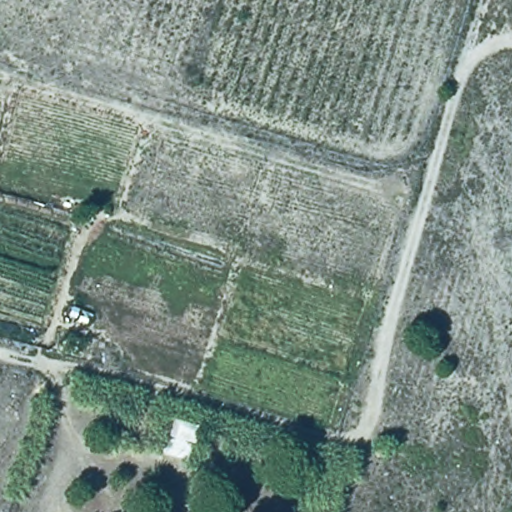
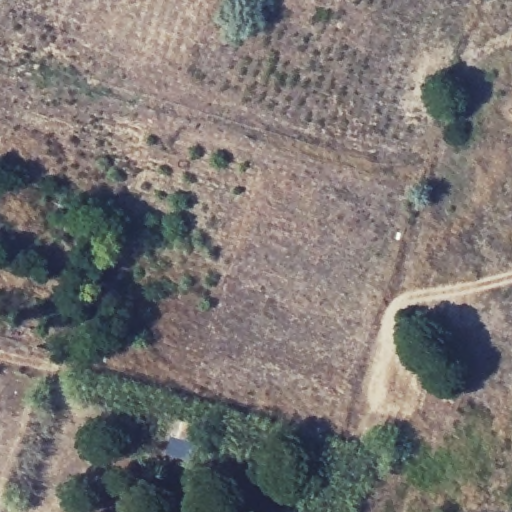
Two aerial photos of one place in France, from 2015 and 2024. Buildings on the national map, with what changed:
unchanged [(202,423),(193,448),(176,443),(178,433),(170,431),(174,416),(202,423)]

